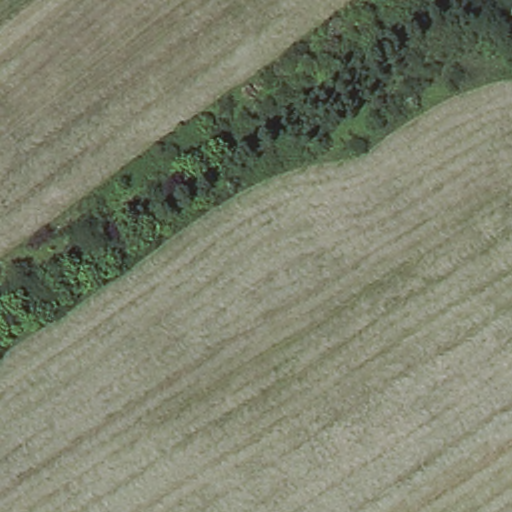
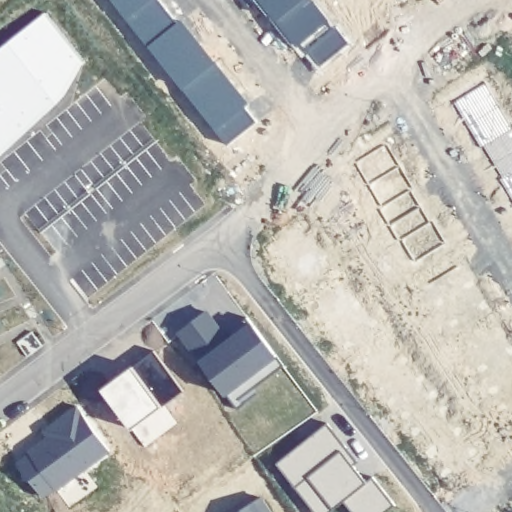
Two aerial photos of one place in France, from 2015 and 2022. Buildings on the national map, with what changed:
new [(181,24),(248,104),(243,109),(256,124),(225,149),(110,0),(155,0),(176,26),(181,24)]
new [(319,69),(308,53),(301,56),(252,0),(311,0),(347,44),(319,69)]
new [(41,14),(83,59),(65,93),(0,156),(0,48),(41,14)]
new [(511,131),(512,130),(512,203),(499,180),(501,179),(483,146),(480,148),(454,103),(484,83),(511,131)]
new [(386,145),(414,192),(410,194),(428,227),(433,223),(444,245),(414,263),(400,239),(396,241),(378,211),(380,208),(354,164),(386,145)]
new [(206,312),(228,339),(248,323),(274,361),(223,399),(176,334),(206,312)]
new [(153,352),(182,392),(129,431),(98,392),(153,352)]
new [(44,439),(41,433),(75,406),(109,455),(41,503),(13,462),(44,439)]
new [(327,426),(356,464),(351,467),(364,485),(372,479),(392,507),(386,512),(350,512),(342,503),(330,512),(312,512),(276,464),(327,426)]
new [(263,499),(270,512),(243,512),(263,499)]

